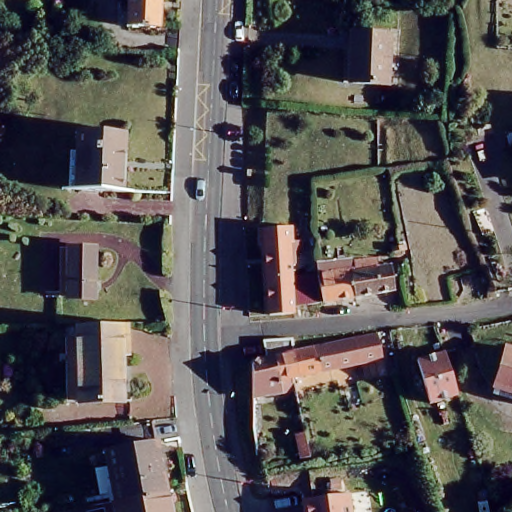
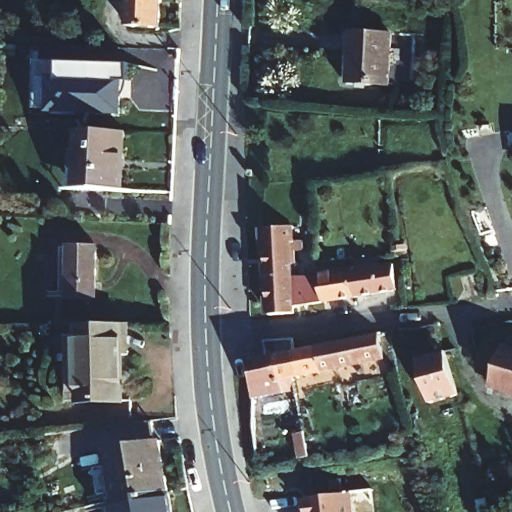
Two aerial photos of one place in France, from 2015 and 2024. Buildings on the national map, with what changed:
unchanged [(155,22),(123,21),(125,0),(156,0),(155,22)]
unchanged [(346,30),(388,32),(385,82),(344,80),(346,30)]
new [(113,116),(48,115),(48,109),(42,109),(42,103),(38,103),(39,63),(127,65),(126,92),(122,92),(117,111),(113,116)]
unchanged [(120,130),(118,157),(113,157),(111,190),(71,187),(74,127),(120,130)]
unchanged [(287,224),(286,242),(296,242),(296,251),(285,252),(286,276),(314,276),(315,287),(318,298),(318,301),(286,306),(287,312),(266,312),(261,244),(257,244),(258,227),(287,224)]
unchanged [(62,242),(89,242),(90,293),(62,294),(62,242)]
unchanged [(373,266),(386,263),(391,288),(350,295),(347,275),(344,259),(373,257),(373,266)]
unchanged [(318,298),(315,287),(314,276),(313,270),(312,261),(344,259),(347,275),(350,295),(318,301),(318,298)]
unchanged [(126,322),(127,351),(123,352),(123,400),(70,400),(69,336),(83,335),(83,323),(126,322)]
unchanged [(248,365),(254,358),(259,358),(254,343),(286,337),(289,350),(373,332),(378,358),(288,377),(290,389),(248,398),(248,365)]
unchanged [(512,352),(512,394),(490,388),(499,348),(512,352)]
unchanged [(419,404),(413,384),(407,362),(412,360),(411,358),(439,350),(447,372),(452,389),(453,393),(419,404)]
unchanged [(110,494),(101,441),(155,431),(164,483),(110,494)]
unchanged [(300,439),(310,437),(314,461),(306,463),(300,439)]
unchanged [(102,512),(98,496),(110,494),(164,483),(170,512),(102,512)]
unchanged [(344,512),(298,512),(298,506),(342,500),(344,512)]

